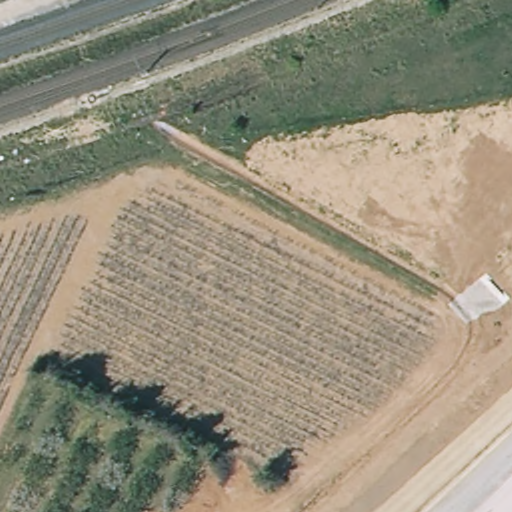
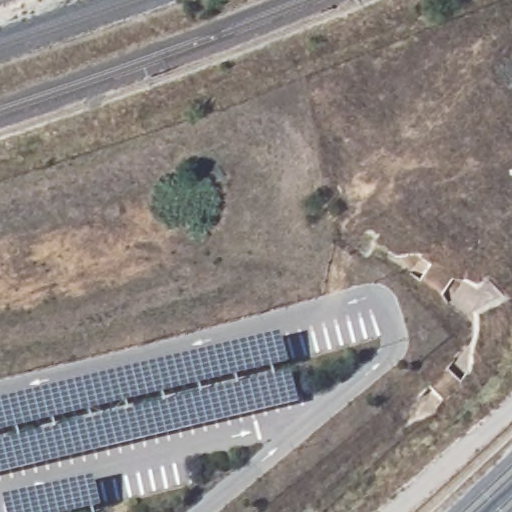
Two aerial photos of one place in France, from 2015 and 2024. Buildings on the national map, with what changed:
new [(291,367),(203,388),(205,395),(293,374),(300,405),(0,477),(0,406),(284,338),(291,367)]
new [(97,480),(104,510),(94,512),(8,512),(6,502),(97,480)]

